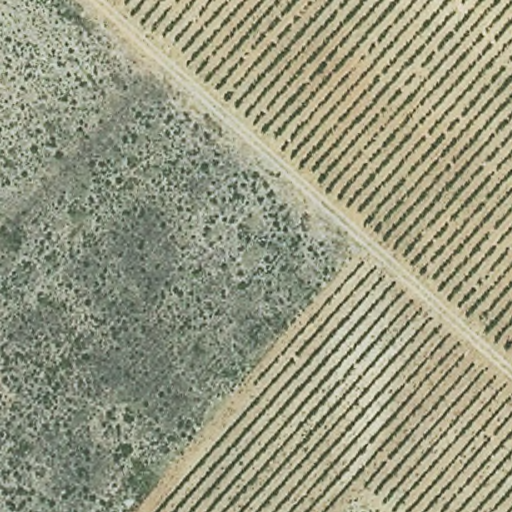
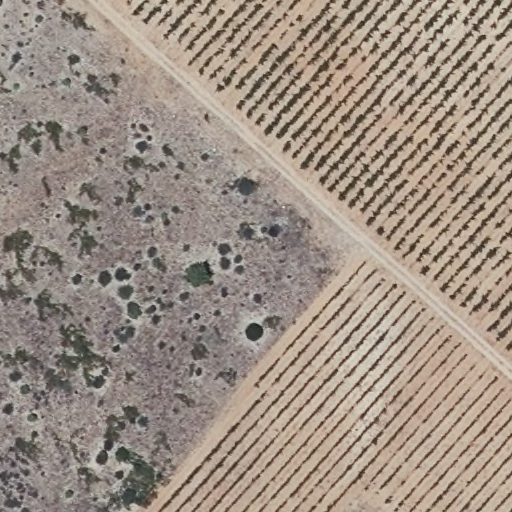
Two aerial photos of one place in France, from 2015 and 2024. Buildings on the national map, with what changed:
[]

